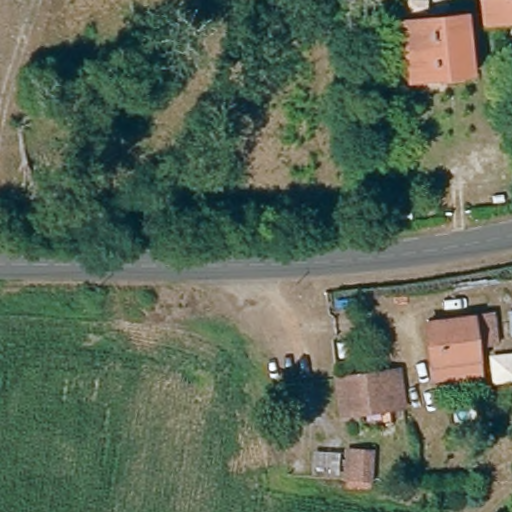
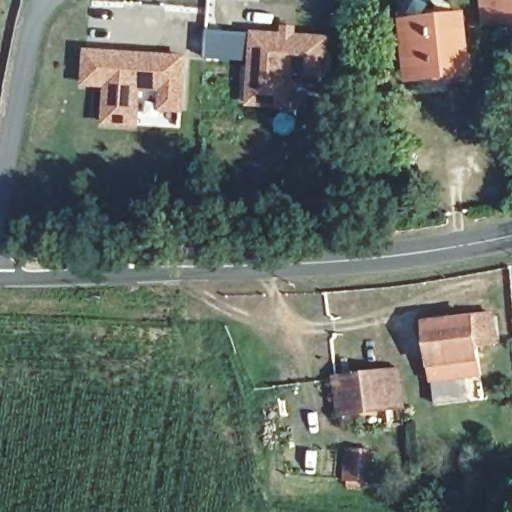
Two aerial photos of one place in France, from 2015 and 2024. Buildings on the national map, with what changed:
unchanged [(488,20),(487,0),(512,0),(512,18),(488,20)]
unchanged [(407,27),(456,20),(466,73),(413,79),(407,27)]
new [(294,75),(292,109),(246,106),(249,60),(206,57),(208,29),(282,32),(282,25),(298,26),(298,33),(331,35),(328,77),(294,75)]
new [(188,53),(185,112),(160,110),(162,90),(142,89),(140,127),(101,124),(104,87),(83,86),(85,47),(188,53)]
unchanged [(426,372),(420,322),(472,316),(480,362),(481,381),(428,390),(426,372)]
unchanged [(341,379),(398,372),(403,407),(344,415),(341,379)]

